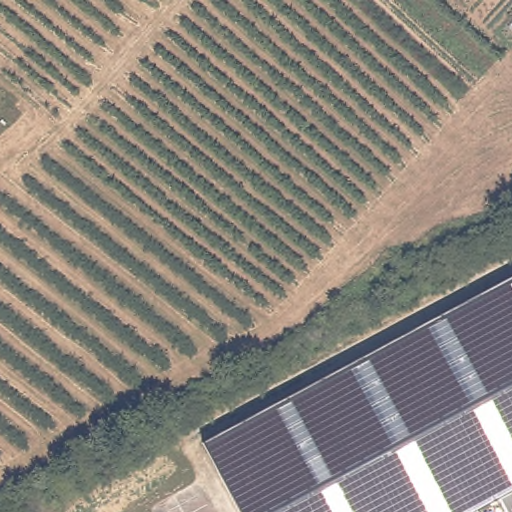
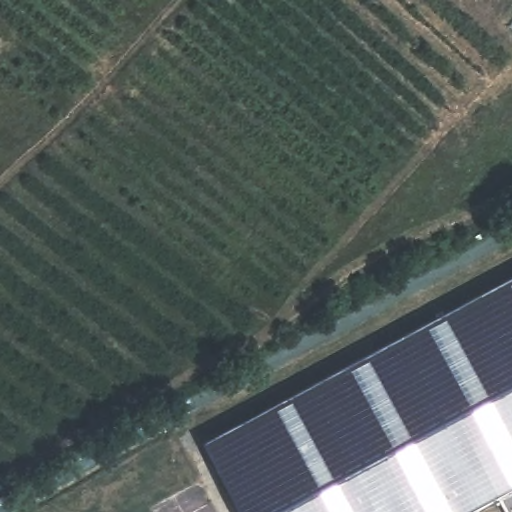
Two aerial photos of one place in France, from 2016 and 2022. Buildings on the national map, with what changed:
unchanged [(207,445),(512,282),(512,512),(509,512),(503,501),(484,512),(244,512),(207,445)]

